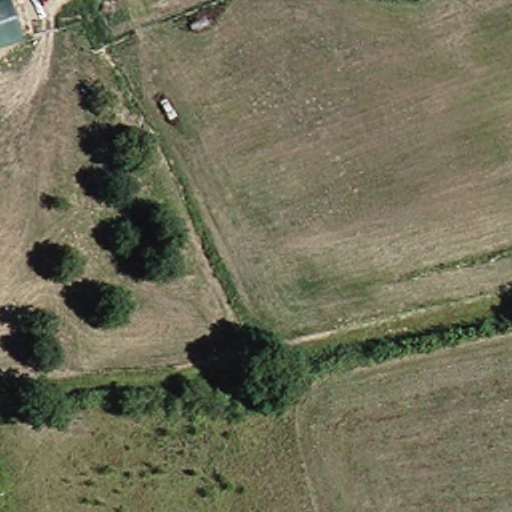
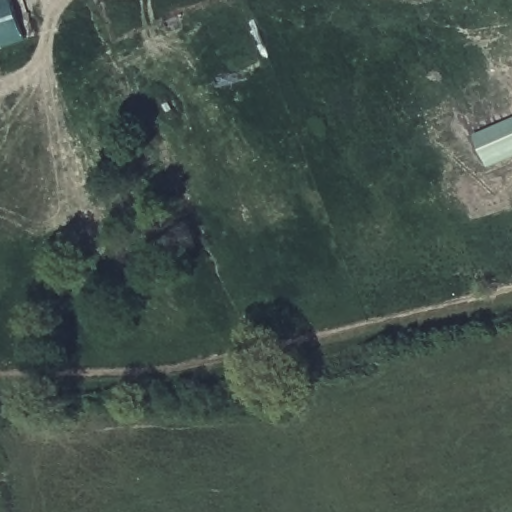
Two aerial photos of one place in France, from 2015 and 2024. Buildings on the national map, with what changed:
unchanged [(5,0),(20,0),(34,39),(0,50),(0,2),(5,0)]
new [(512,159),(486,168),(474,135),(512,121),(512,159)]

